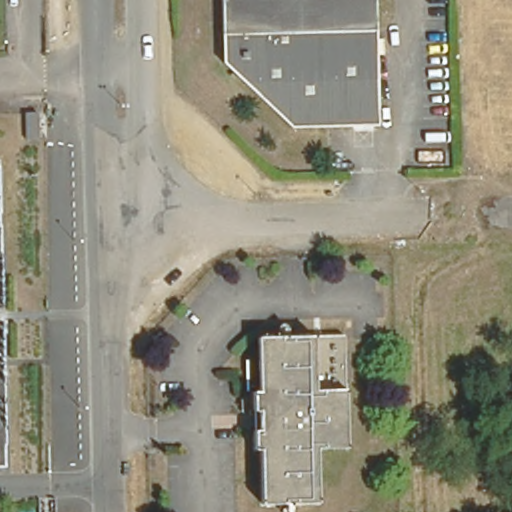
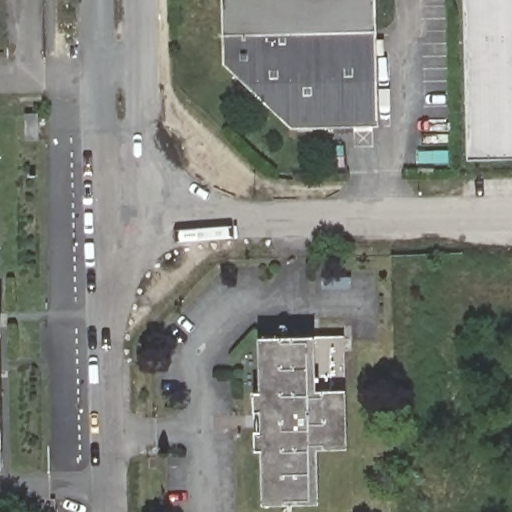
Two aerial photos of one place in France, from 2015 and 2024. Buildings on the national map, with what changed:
unchanged [(4,54),(0,54),(0,0),(3,0),(4,54)]
unchanged [(374,121),(287,123),(218,58),(218,46),(217,0),(371,0),(371,26),(374,121)]
new [(512,158),(467,159),(463,0),(512,0),(512,158)]
unchanged [(352,449),(322,450),(323,504),(267,505),(266,451),(260,451),(258,393),(264,393),(263,339),(349,336),(352,449)]

